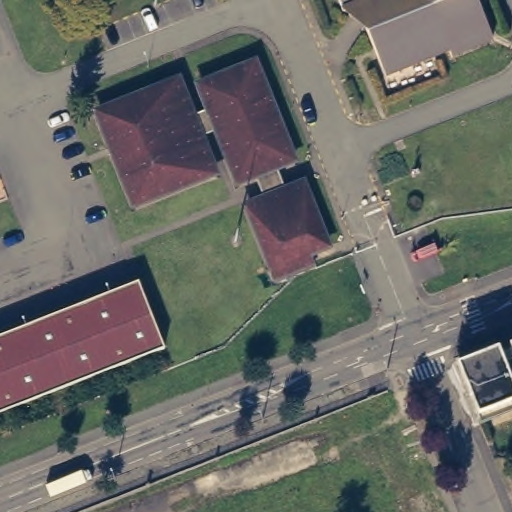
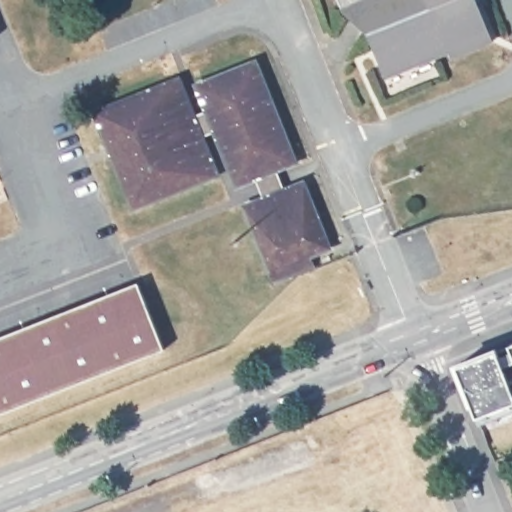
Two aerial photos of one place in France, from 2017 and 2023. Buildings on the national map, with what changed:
unchanged [(449,52),(385,78),(364,24),(343,12),(338,0),(475,0),(492,41),(452,58),(449,52)]
unchanged [(255,59),(294,157),(237,180),(199,81),(255,59)]
unchanged [(134,201),(97,109),(178,76),(215,169),(134,201)]
unchanged [(277,278),(272,265),(247,202),(302,180),(327,242),(312,249),(316,262),(277,278)]
unchanged [(164,345),(0,410),(0,333),(138,278),(164,345)]
unchanged [(447,362),(482,348),(482,349),(488,346),(494,361),(505,356),(502,348),(500,341),(502,340),(512,337),(512,410),(507,397),(467,413),(445,362),(447,362)]

